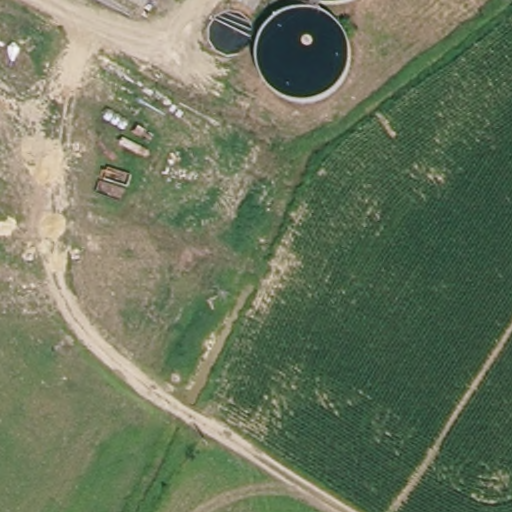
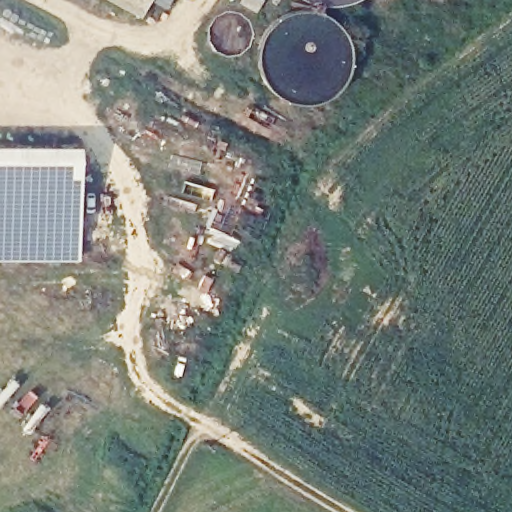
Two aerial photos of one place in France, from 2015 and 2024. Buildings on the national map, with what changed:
unchanged [(147,16),(118,0),(156,0),(147,16)]
new [(81,261),(0,261),(0,146),(79,146),(81,261)]

